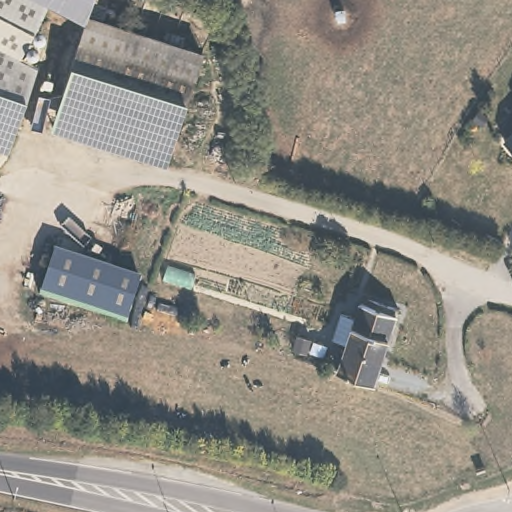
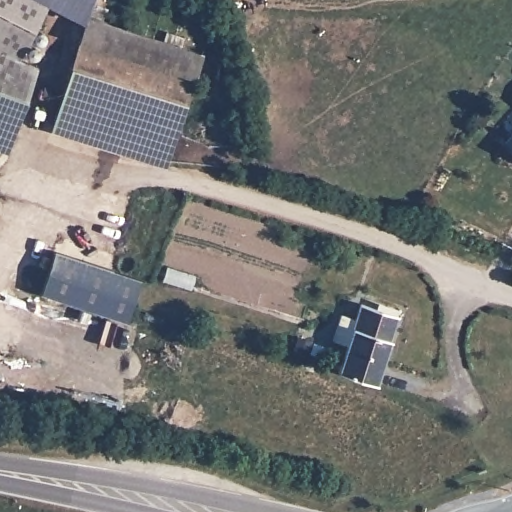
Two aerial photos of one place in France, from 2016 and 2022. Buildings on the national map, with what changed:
unchanged [(31,61),(18,102),(0,96),(0,0),(46,0),(14,54),(31,61)]
unchanged [(81,17),(47,0),(90,0),(86,6),(81,17)]
unchanged [(86,11),(203,51),(195,76),(78,37),(86,11)]
unchanged [(195,76),(186,102),(69,63),(78,37),(195,76)]
unchanged [(186,102),(166,157),(50,120),(69,63),(186,102)]
unchanged [(0,96),(18,102),(6,135),(2,149),(0,148),(0,96)]
unchanged [(505,146),(512,138),(512,152),(505,146)]
unchanged [(116,273),(136,280),(126,309),(121,322),(95,313),(35,292),(50,250),(116,273)]
unchanged [(347,347),(332,342),(338,323),(341,315),(356,320),(361,304),(397,316),(390,339),(376,386),(338,374),(347,347)]

